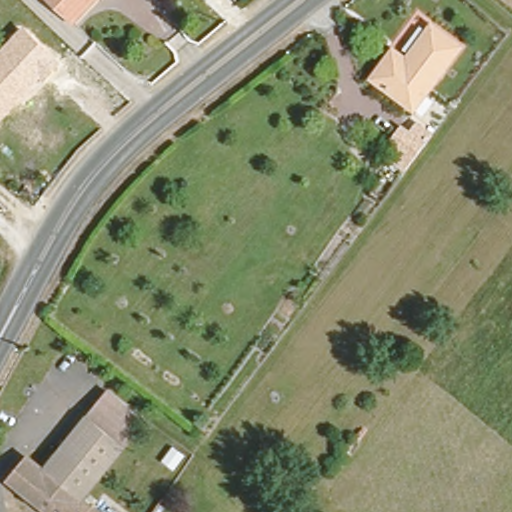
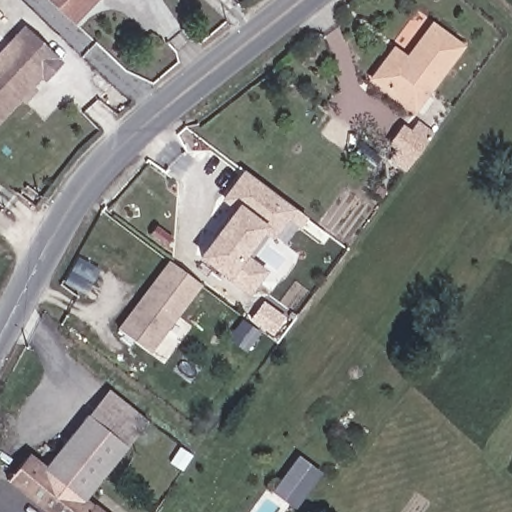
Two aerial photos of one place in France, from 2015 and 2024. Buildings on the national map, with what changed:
unchanged [(56,0),(91,0),(74,17),(56,0)]
unchanged [(437,21),(465,42),(418,106),(376,75),(398,45),(411,55),(437,21)]
unchanged [(45,82),(40,79),(32,86),(35,90),(23,104),(19,101),(0,121),(0,50),(22,26),(61,63),(45,82)]
new [(298,226),(285,217),(252,262),(261,270),(249,291),(202,257),(236,211),(225,198),(245,174),(304,219),(298,226)]
new [(150,353),(115,327),(167,260),(199,285),(150,353)]
unchanged [(6,477),(26,451),(42,465),(86,411),(125,442),(81,496),(90,504),(93,505),(102,512),(49,512),(6,477)]
new [(294,510),(269,490),(296,450),(323,471),(294,510)]

